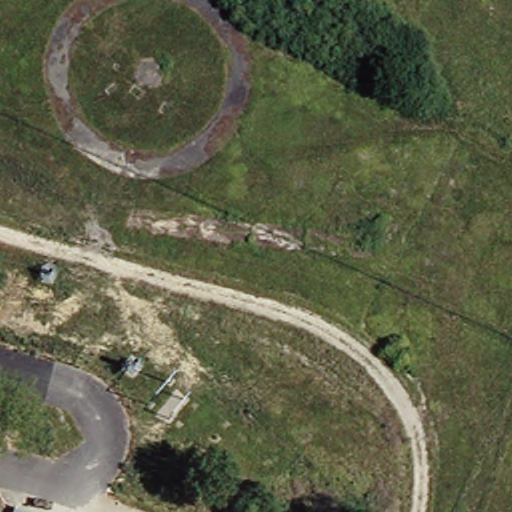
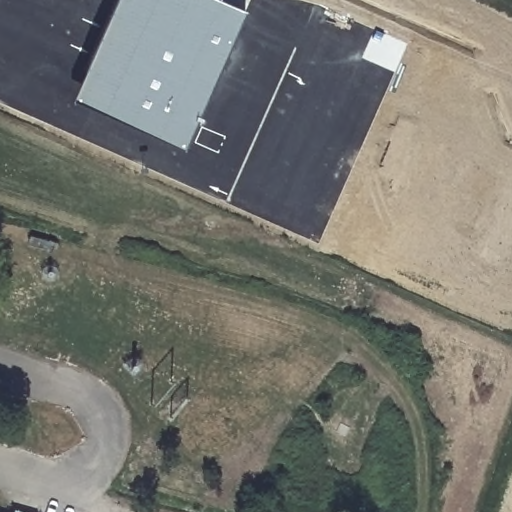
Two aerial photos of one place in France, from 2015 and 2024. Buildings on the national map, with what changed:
new [(117,0),(220,0),(244,10),(183,149),(72,97),(117,0)]

